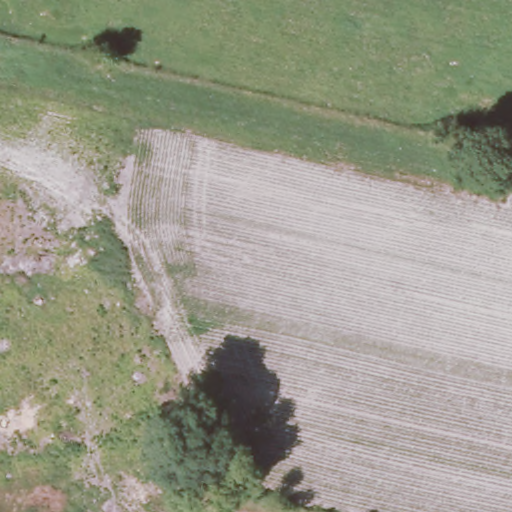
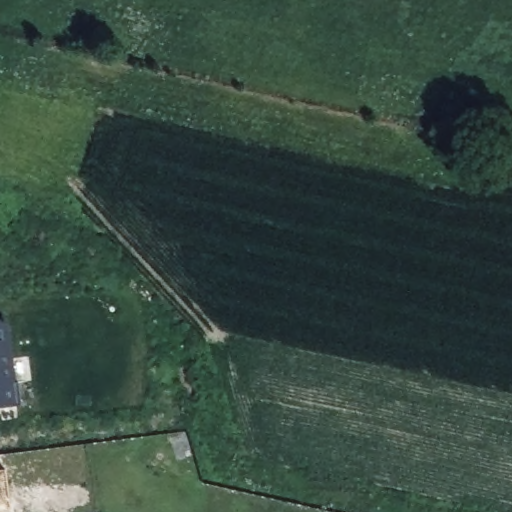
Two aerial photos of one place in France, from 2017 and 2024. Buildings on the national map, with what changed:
new [(19,406),(0,409),(0,324),(8,322),(19,406)]

